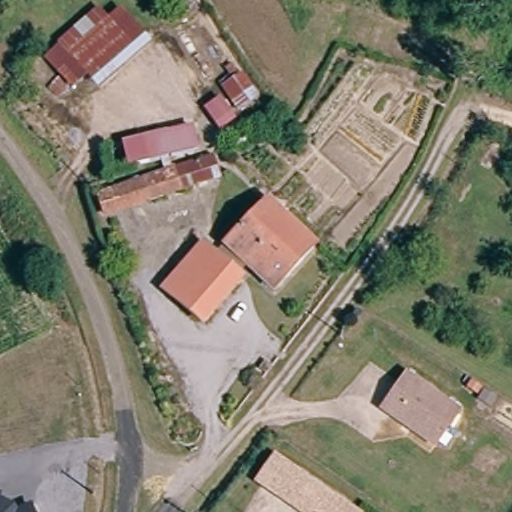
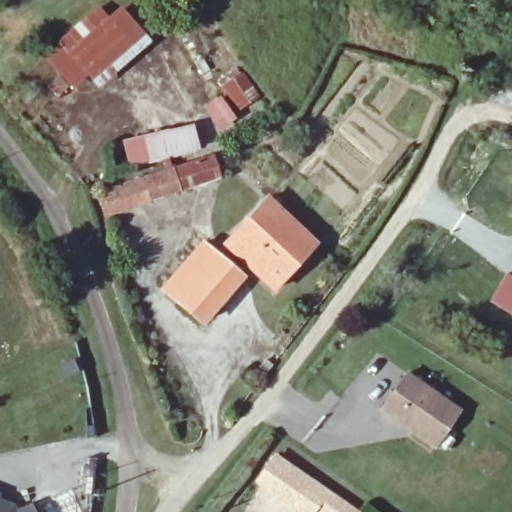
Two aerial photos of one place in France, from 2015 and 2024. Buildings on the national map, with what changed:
unchanged [(106,13),(119,1),(148,35),(99,84),(89,72),(72,87),(41,54),(94,2),(106,13)]
unchanged [(196,144),(126,163),(120,139),(191,121),(196,144)]
unchanged [(212,150),(220,175),(103,214),(93,186),(212,150)]
unchanged [(277,288),(219,239),(231,225),(240,232),(266,200),(303,232),(315,242),(277,288)]
unchanged [(225,282),(198,315),(156,283),(196,236),(237,266),(225,282)]
new [(512,274),(512,315),(488,301),(506,271),(512,274)]
unchanged [(460,412),(435,447),(382,409),(407,373),(460,412)]
unchanged [(362,512),(323,512),(320,510),(320,512),(308,512),(263,482),(280,457),(362,512)]
unchanged [(3,491),(0,495),(14,502),(18,508),(31,501),(36,512),(0,512),(0,490),(3,491)]

